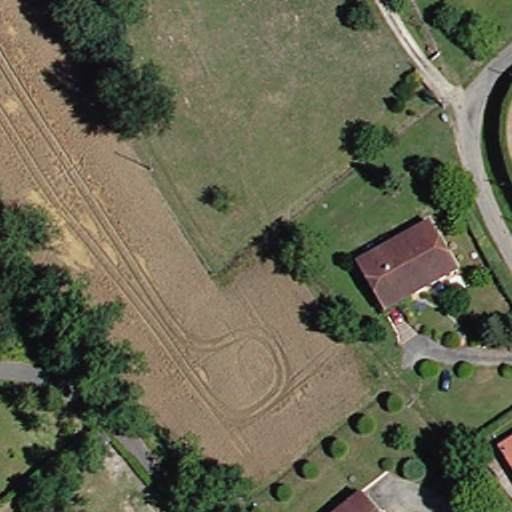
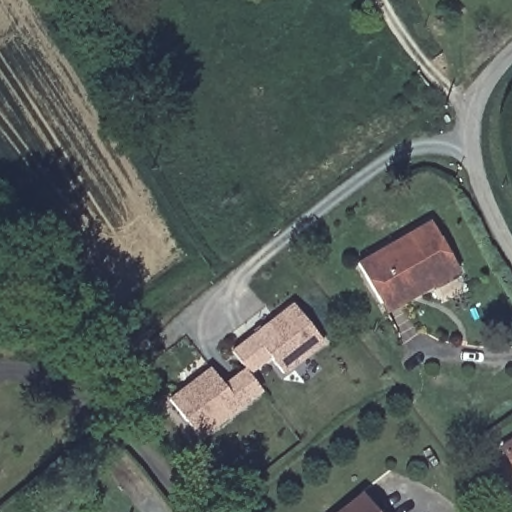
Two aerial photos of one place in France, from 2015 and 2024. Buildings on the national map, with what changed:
unchanged [(387,305),(360,265),(432,219),(464,268),(425,293),(393,314),(387,305)]
new [(239,377),(247,372),(234,353),(242,347),(255,336),(295,305),(324,342),(284,374),(271,357),(258,367),(249,374),(262,390),(254,397),(241,407),(202,438),(173,402),(213,371),(225,386),(239,377)]
unchanged [(503,446),(512,440),(512,463),(503,446)]
unchanged [(378,512),(341,512),(364,495),(378,512)]

